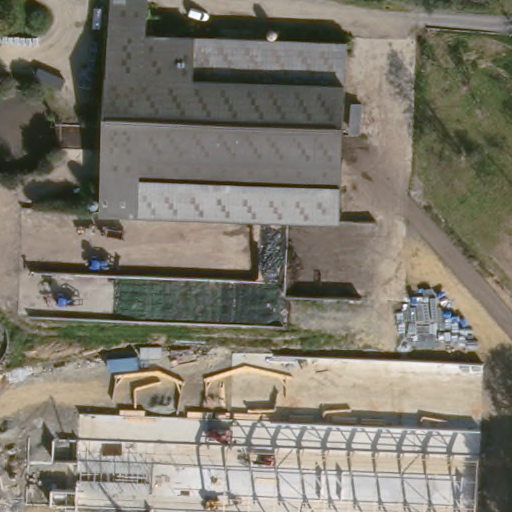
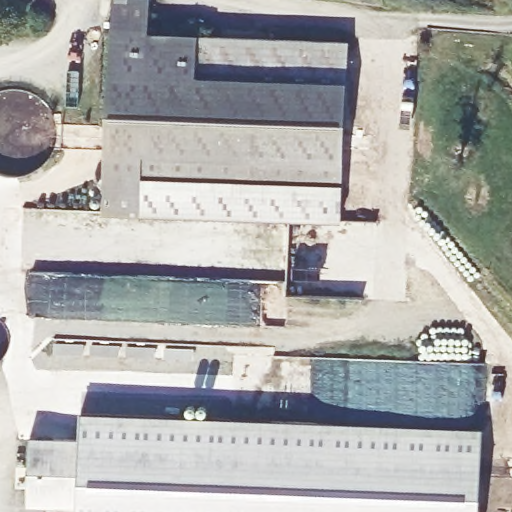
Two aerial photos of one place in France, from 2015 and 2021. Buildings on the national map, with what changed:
unchanged [(103,217),(110,5),(146,6),(145,41),(345,46),(340,223),(103,217)]
new [(78,512),(78,507),(27,505),(30,436),(80,438),(81,412),(483,427),(480,512),(78,512)]

